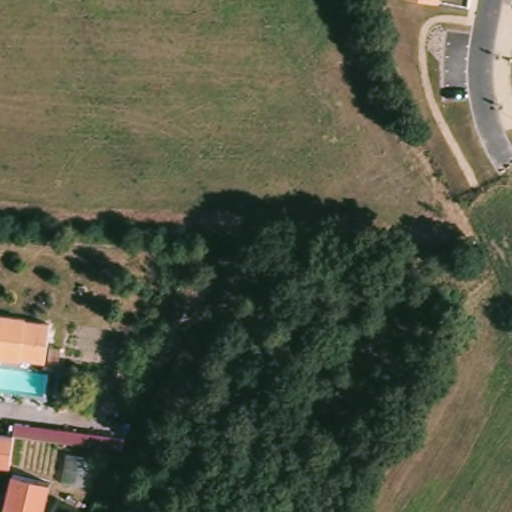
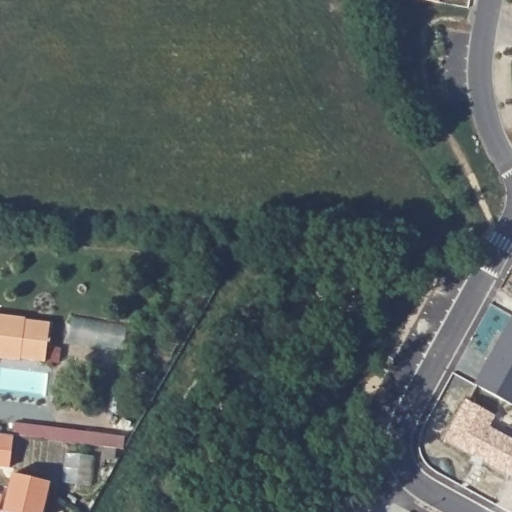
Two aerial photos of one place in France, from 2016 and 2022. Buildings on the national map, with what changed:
unchanged [(440,4),(421,0),(441,0),(440,4)]
unchanged [(26,319),(26,321),(50,324),(45,362),(21,360),(21,361),(0,358),(0,316),(26,319)]
new [(500,350),(508,336),(503,333),(512,317),(512,406),(475,385),(495,347),(500,350)]
new [(496,415),(489,427),(512,440),(512,478),(444,440),(467,400),(496,415)]
new [(78,445),(28,438),(14,436),(16,423),(30,425),(80,431),(78,445)]
unchanged [(0,467),(0,435),(8,436),(4,468),(0,467)]

